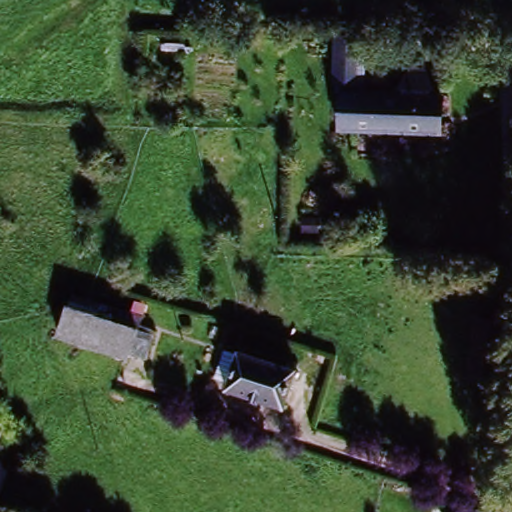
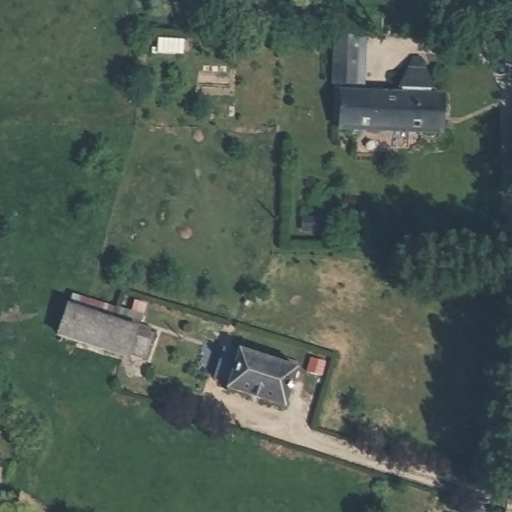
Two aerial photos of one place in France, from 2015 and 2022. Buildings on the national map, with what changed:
unchanged [(417,60),(427,62),(437,92),(434,92),(433,97),(447,98),(445,138),(338,134),(340,94),(400,96),(398,90),(417,60)]
unchanged [(130,332),(142,337),(132,365),(62,341),(70,314),(73,301),(113,313),(133,320),(130,332)]
unchanged [(474,322),(505,327),(495,386),(467,380),(474,322)]
unchanged [(220,386),(230,355),(243,360),(245,356),(303,376),(290,417),(232,397),(233,390),(220,386)]

